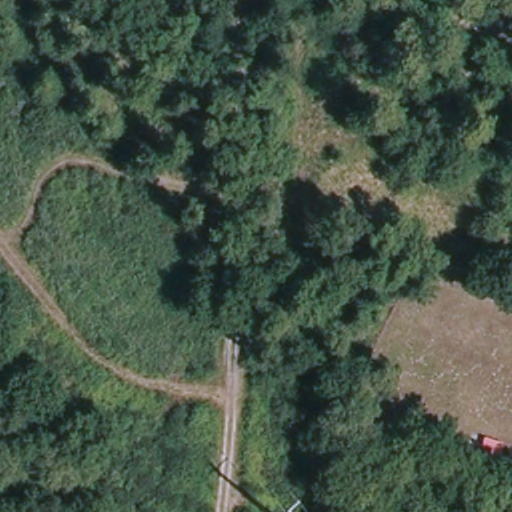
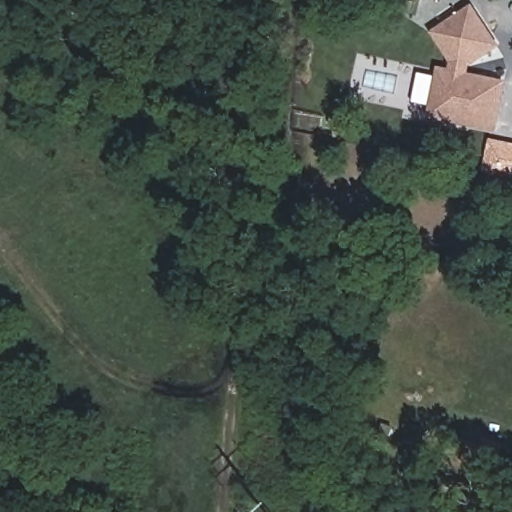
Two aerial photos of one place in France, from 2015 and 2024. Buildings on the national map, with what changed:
new [(468,123),(430,116),(440,70),(451,72),(454,61),(434,33),(470,8),(497,45),(468,65),(466,75),(504,83),(498,114),(495,128),(468,123)]
unchanged [(499,471),(465,461),(469,439),(505,451),(499,471)]

